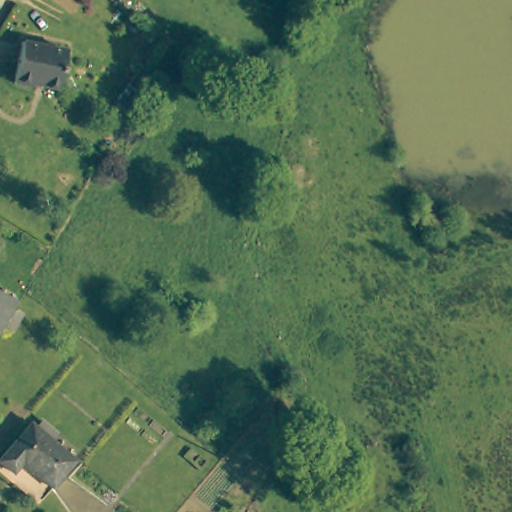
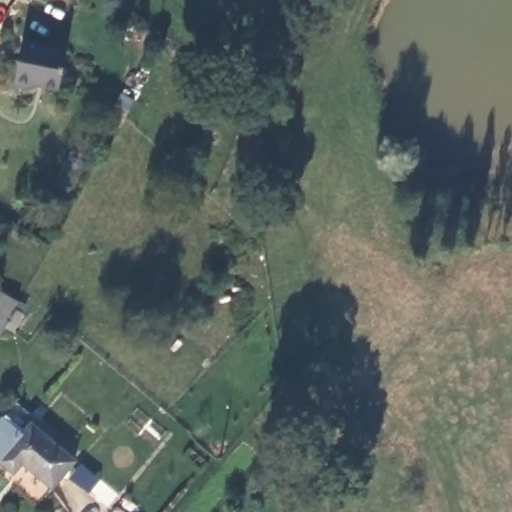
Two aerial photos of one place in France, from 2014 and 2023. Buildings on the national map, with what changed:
unchanged [(55,94),(35,89),(36,83),(14,78),(26,36),(67,46),(55,94)]
unchanged [(0,328),(0,297),(7,288),(12,291),(21,298),(0,328)]
unchanged [(76,460),(54,486),(25,462),(15,474),(0,459),(33,424),(76,460)]
unchanged [(130,505),(137,512),(122,512),(130,505)]

